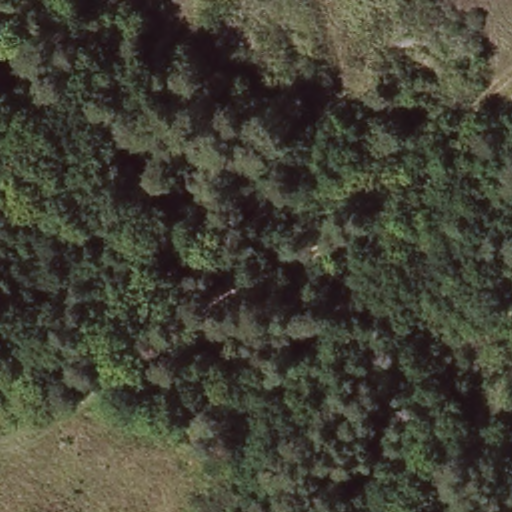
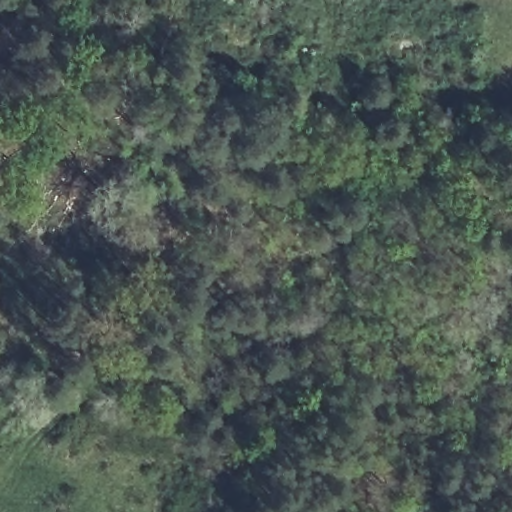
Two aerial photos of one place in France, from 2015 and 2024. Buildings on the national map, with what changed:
[]

